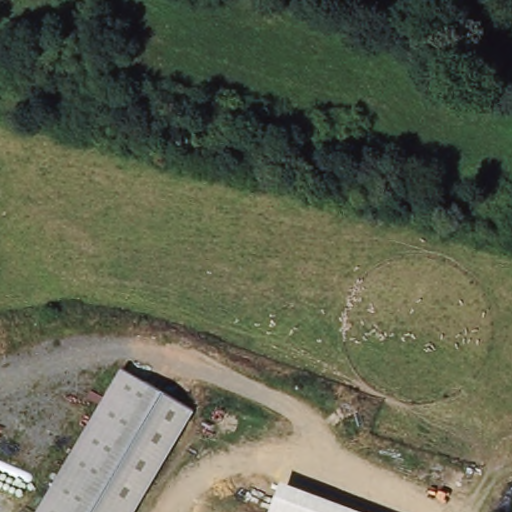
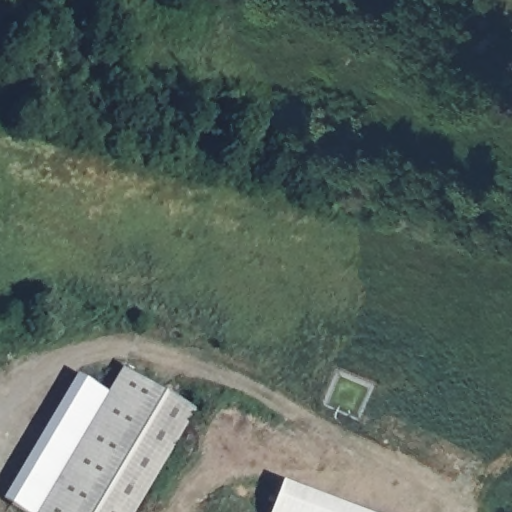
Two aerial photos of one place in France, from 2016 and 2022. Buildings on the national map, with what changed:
unchanged [(91,512),(38,512),(123,370),(163,392),(91,512)]
new [(20,512),(2,501),(75,376),(108,395),(38,512),(20,512)]
unchanged [(134,512),(91,512),(163,392),(194,412),(134,512)]
unchanged [(356,512),(312,512),(277,500),(282,485),(356,512)]
unchanged [(312,512),(272,512),(277,500),(312,512)]

